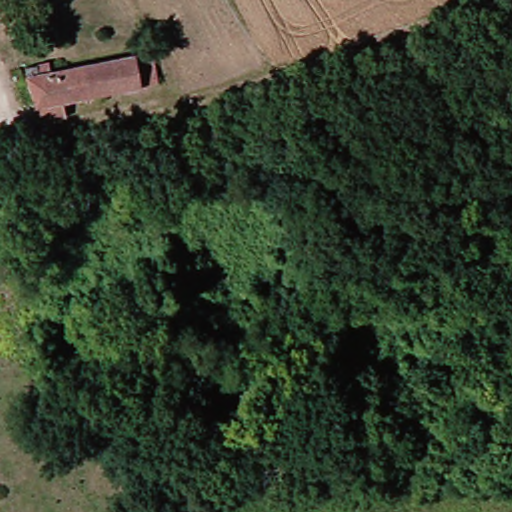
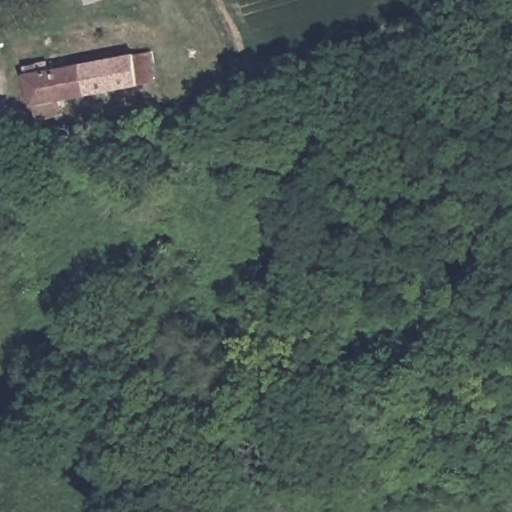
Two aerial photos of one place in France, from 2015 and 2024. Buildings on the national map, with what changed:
unchanged [(156,54),(163,87),(42,111),(30,81),(156,54)]

